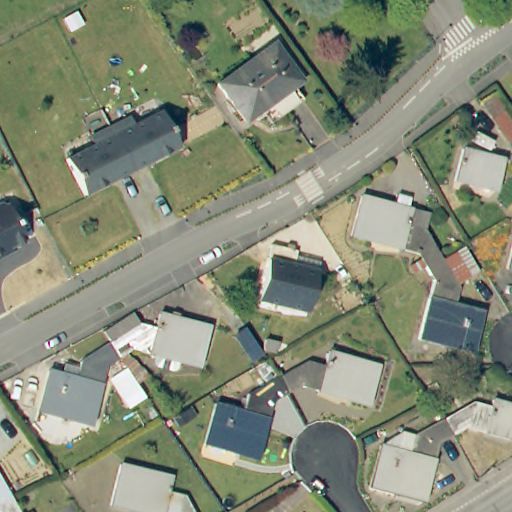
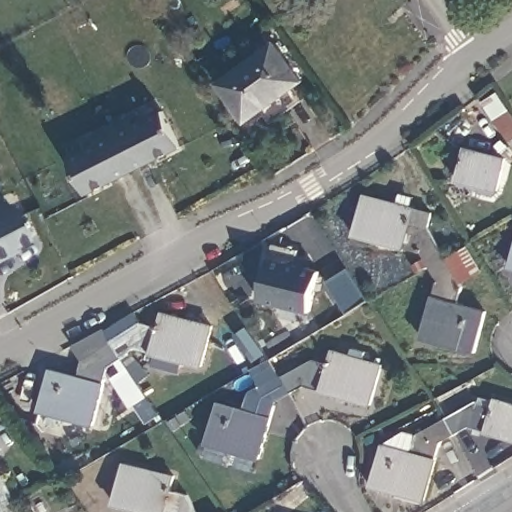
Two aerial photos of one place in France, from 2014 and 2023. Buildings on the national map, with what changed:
unchanged [(300,78),(245,118),(216,80),(272,39),(300,78)]
unchanged [(512,137),(481,87),(496,77),(512,101),(512,137)]
unchanged [(128,113),(133,121),(158,108),(178,142),(132,168),(108,123),(128,113)]
unchanged [(84,195),(65,158),(92,142),(87,133),(108,123),(132,168),(84,195)]
unchanged [(503,159),(495,189),(455,177),(461,149),(503,159)]
unchanged [(425,268),(416,250),(353,237),(358,198),(393,204),(395,196),(410,198),(408,207),(428,212),(425,231),(442,258),(425,268)]
unchanged [(11,203),(29,235),(7,247),(10,251),(0,258),(0,202),(11,203)]
unchanged [(444,261),(465,248),(481,274),(461,285),(455,314),(480,320),(472,356),(423,344),(436,288),(425,268),(442,258),(444,261)]
unchanged [(297,254),(296,260),(317,264),(307,312),(261,303),(273,249),(297,254)]
unchanged [(512,256),(512,271),(509,270),(512,256)]
unchanged [(137,324),(155,329),(160,316),(210,331),(199,369),(136,350),(122,359),(104,371),(91,424),(38,411),(49,369),(77,375),(83,358),(111,339),(137,324)]
unchanged [(278,376),(305,359),(323,364),(328,351),(378,366),(368,404),(304,386),(289,395),(278,376)]
unchanged [(289,395),(271,405),(258,458),(205,446),(216,403),(244,409),(250,392),(278,376),(289,395)]
unchanged [(489,410),(492,405),(512,411),(512,445),(470,433),(453,442),(440,421),(473,403),(489,410)]
unchanged [(435,451),(423,498),(371,486),(381,449),(408,451),(410,439),(440,421),(453,442),(435,451)]
unchanged [(118,462),(171,475),(169,492),(183,495),(194,512),(155,512),(112,502),(118,462)]
unchanged [(18,501),(1,512),(0,512),(0,471),(18,501)]
unchanged [(27,496),(37,512),(1,512),(18,501),(27,496)]

